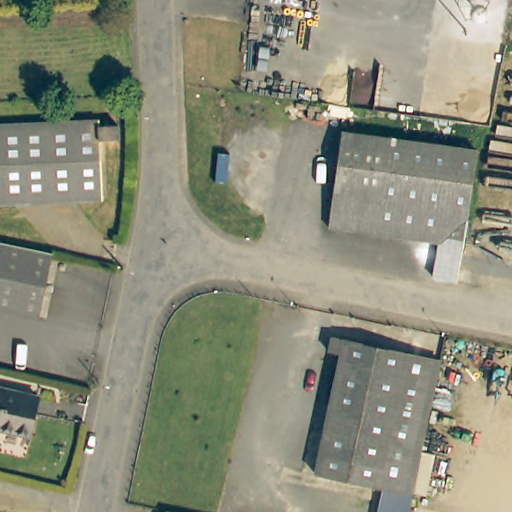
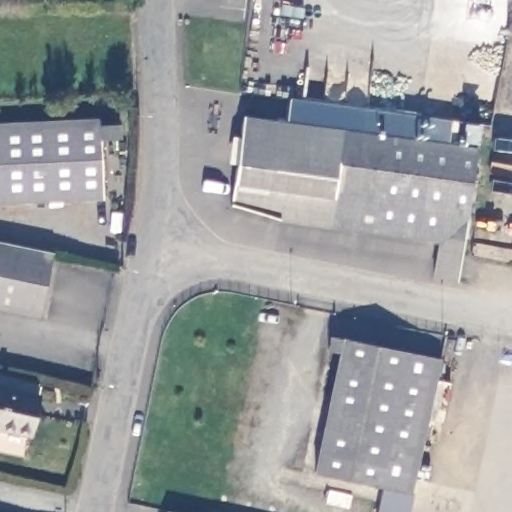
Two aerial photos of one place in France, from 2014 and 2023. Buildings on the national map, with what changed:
new [(449,145),(443,144),(344,129),(287,122),(290,97),(454,119),(449,145)]
new [(330,224),(281,220),(231,205),(237,166),(229,163),(233,137),(241,138),(244,116),(287,122),(344,129),(330,224)]
unchanged [(100,133),(119,132),(120,144),(100,145),(102,204),(13,207),(0,208),(0,132),(100,128),(100,133)]
unchanged [(330,224),(344,129),(443,144),(476,149),(464,244),(330,224)]
unchanged [(0,309),(0,243),(56,254),(44,318),(0,309)]
unchanged [(343,355),(330,352),(333,339),(441,363),(413,494),(384,488),(317,472),(343,355)]
unchanged [(34,437),(6,430),(0,434),(0,388),(42,398),(34,437)]
new [(378,512),(384,488),(413,494),(409,512),(378,512)]

